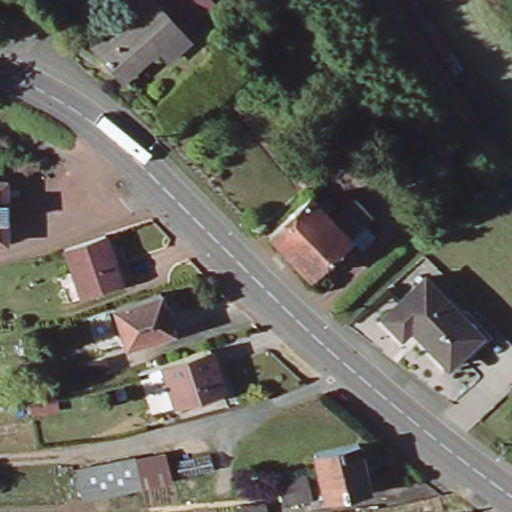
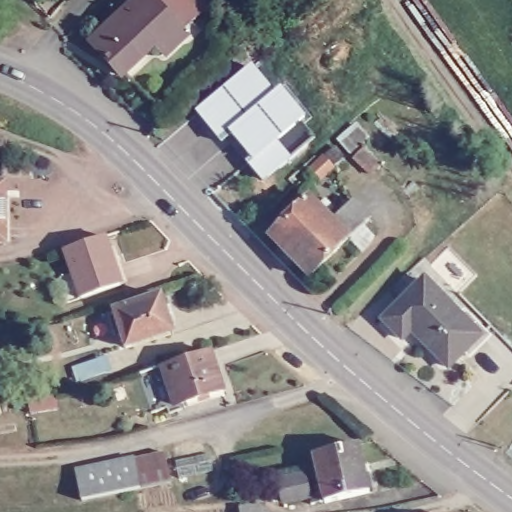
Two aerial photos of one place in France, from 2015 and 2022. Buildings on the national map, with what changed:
unchanged [(194,30),(184,39),(179,34),(160,51),(151,40),(117,71),(88,38),(129,0),(148,0),(164,17),(175,8),(194,30)]
new [(288,158),(291,161),(263,184),(246,163),(250,158),(229,134),(220,142),(196,114),(252,66),(276,95),(282,90),(306,121),(303,125),(314,138),(288,158)]
unchanged [(9,177),(9,237),(0,237),(0,177),(9,177)]
unchanged [(335,221),(344,212),(341,209),(353,198),(356,200),(373,218),(352,239),(314,276),(273,235),(312,198),(335,221)]
unchanged [(104,233),(121,283),(81,296),(64,247),(104,233)]
unchanged [(428,273),(483,330),(450,362),(426,337),(430,333),(418,321),(406,333),(387,313),(428,273)]
unchanged [(159,294),(172,331),(125,347),(113,310),(159,294)]
unchanged [(207,349),(220,389),(174,403),(160,364),(207,349)]
unchanged [(310,491),(285,496),(280,474),(306,468),(306,470),(319,467),(314,447),(359,438),(369,487),(325,496),(324,494),(311,496),(310,491)]
unchanged [(172,444),(174,460),(213,452),(217,472),(81,502),(74,465),(172,444)]
unchanged [(265,505),(265,512),(241,512),(241,507),(265,505)]

